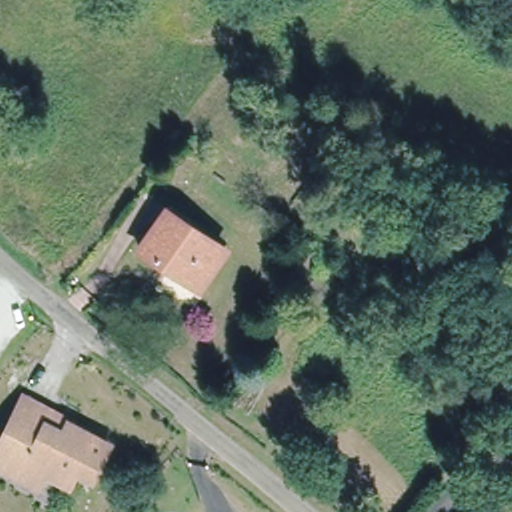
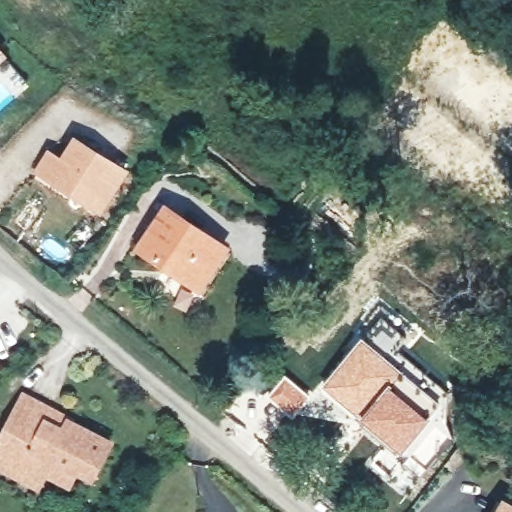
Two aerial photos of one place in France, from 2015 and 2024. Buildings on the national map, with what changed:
new [(8,55),(0,63),(0,45),(8,55)]
new [(61,156),(74,135),(130,170),(101,215),(32,175),(48,147),(61,156)]
unchanged [(164,206),(226,247),(198,291),(135,250),(164,206)]
new [(423,465),(405,450),(400,456),(349,414),(343,421),(311,417),(300,411),(293,418),(267,396),(285,374),(310,395),(318,386),(362,335),(443,400),(430,419),(447,435),(423,465)]
unchanged [(46,467),(39,481),(0,460),(0,442),(26,392),(56,407),(73,417),(72,419),(111,440),(92,473),(78,466),(70,480),(46,467)]
unchanged [(512,503),(512,512),(504,512),(509,502),(512,503)]

